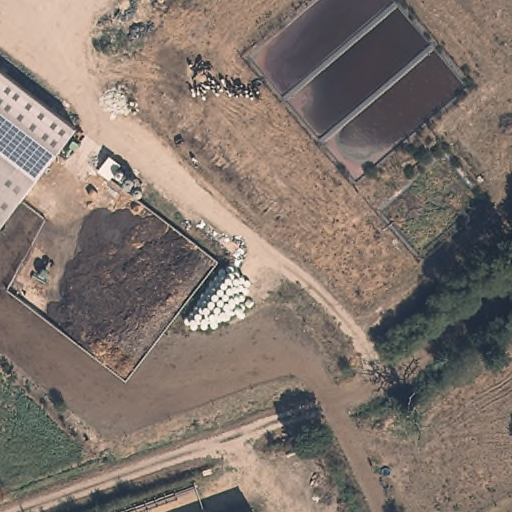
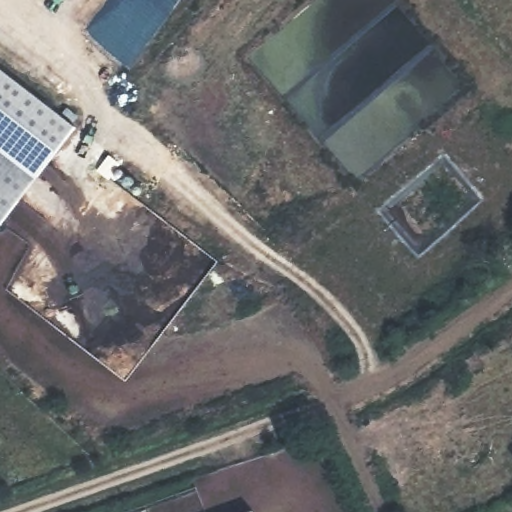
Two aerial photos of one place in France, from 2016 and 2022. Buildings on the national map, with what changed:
unchanged [(0,226),(0,147),(38,176),(0,226)]
unchanged [(252,507),(254,512),(238,512),(252,507)]

